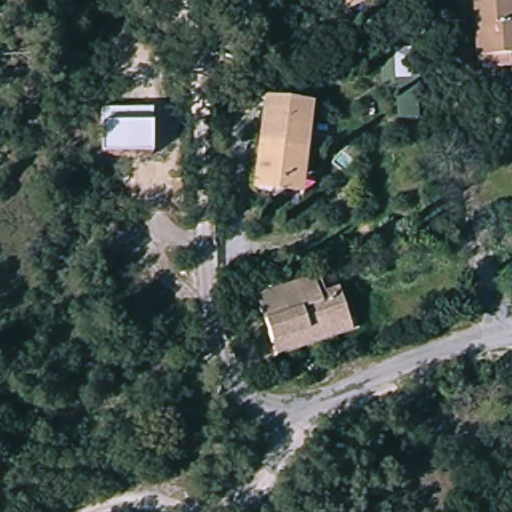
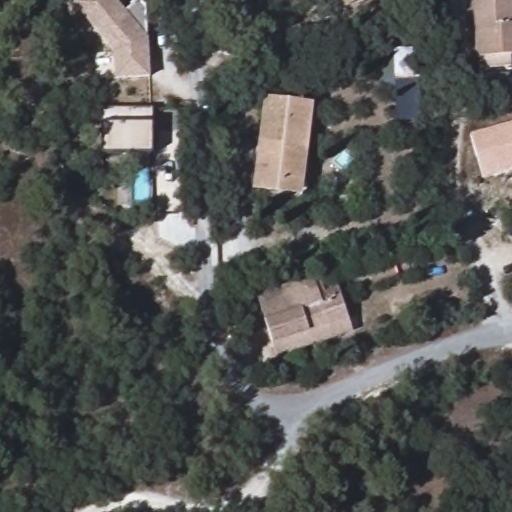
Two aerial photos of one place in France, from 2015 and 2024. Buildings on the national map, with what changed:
new [(68,0),(101,0),(113,11),(124,0),(128,0),(133,5),(145,74),(112,80),(107,53),(60,8),(68,0)]
unchanged [(474,55),(471,0),(510,0),(512,22),(512,23),(512,53),(474,55)]
unchanged [(413,118),(395,120),(394,87),(380,88),(377,48),(393,48),(411,48),(413,118)]
unchanged [(315,105),(304,166),(295,186),(277,192),(265,192),(259,186),(268,102),(315,105)]
unchanged [(102,107),(153,108),(153,123),(151,154),(102,154),(103,125),(102,107)]
new [(483,178),(471,134),(512,122),(512,170),(483,178)]
unchanged [(316,272),(322,300),(343,297),(346,319),(269,336),(256,288),(316,272)]
unchanged [(346,319),(348,332),(273,352),(269,336),(346,319)]

